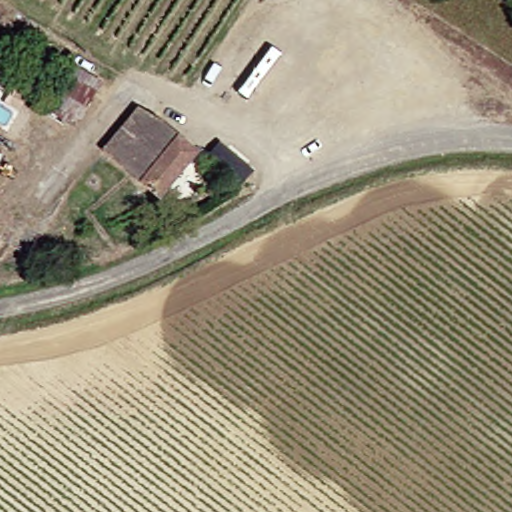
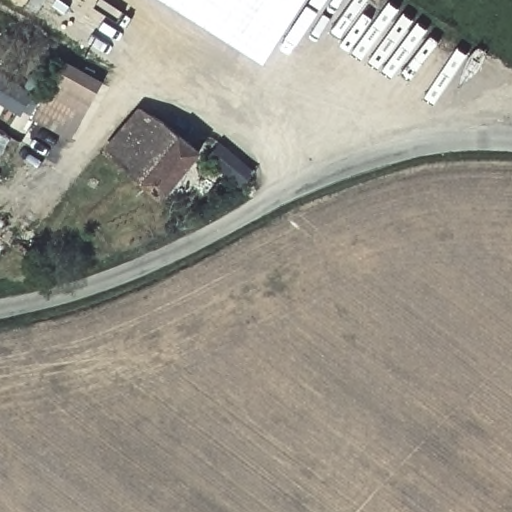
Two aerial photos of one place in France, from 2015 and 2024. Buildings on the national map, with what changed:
new [(265,63),(165,0),(304,0),(265,63)]
unchanged [(76,120),(41,99),(64,59),(100,80),(76,120)]
unchanged [(146,100),(201,149),(161,194),(106,145),(146,100)]
new [(207,154),(221,139),(255,168),(242,184),(207,154)]

